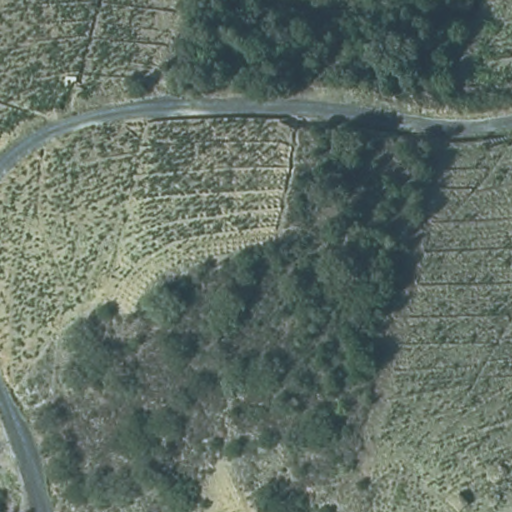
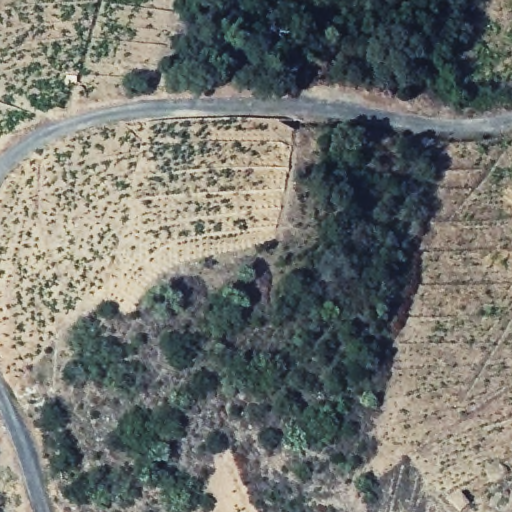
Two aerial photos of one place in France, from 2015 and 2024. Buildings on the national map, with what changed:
unchanged [(468,512),(460,512),(452,501),(467,492),(476,505),(468,512)]

